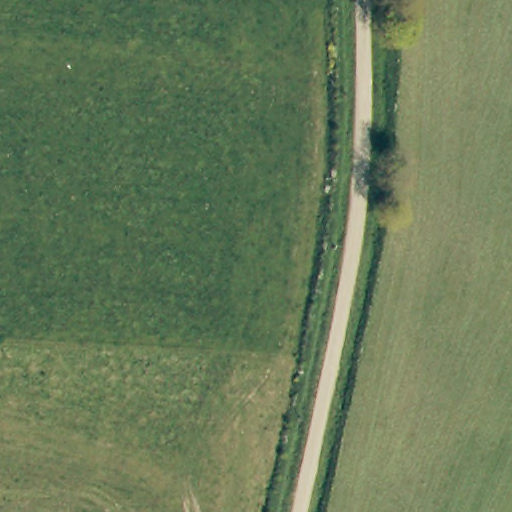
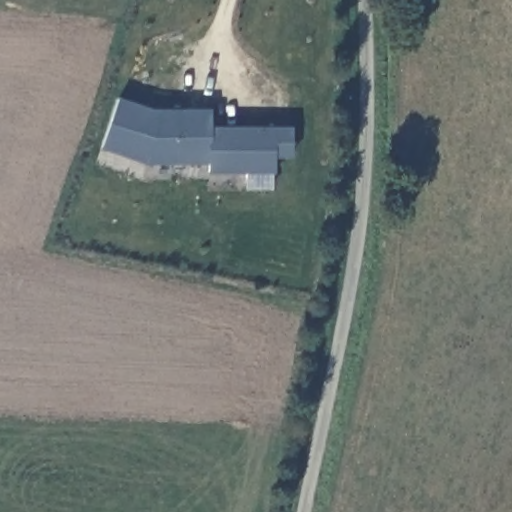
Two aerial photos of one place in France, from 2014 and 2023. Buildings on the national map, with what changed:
new [(211,126),(291,125),(292,157),(273,157),(274,173),(208,174),(208,164),(144,164),(102,149),(120,97),(153,108),(209,107),(211,126)]

